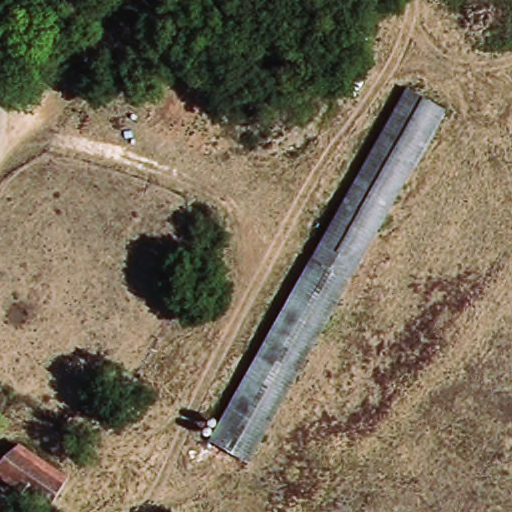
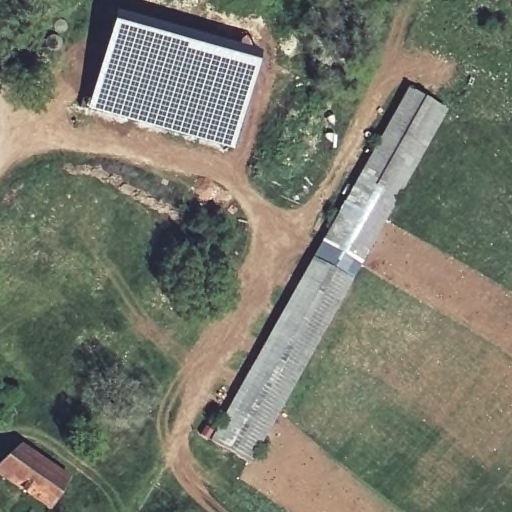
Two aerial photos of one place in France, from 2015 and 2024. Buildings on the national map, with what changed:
new [(109,19),(256,59),(231,150),(84,109),(109,19)]
unchanged [(410,96),(451,120),(252,454),(211,433),(410,96)]
unchanged [(0,477),(0,468),(20,447),(73,484),(52,512),(49,512),(0,477)]

